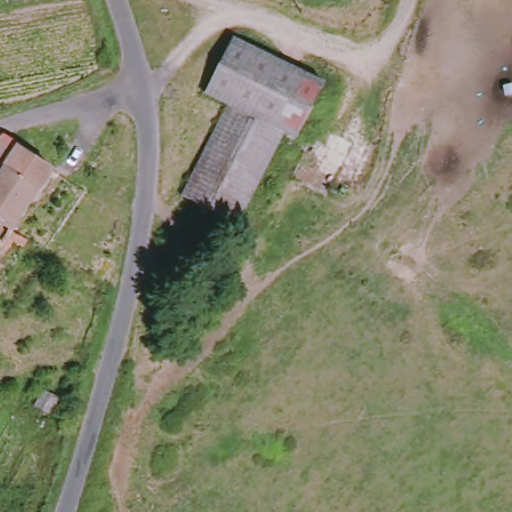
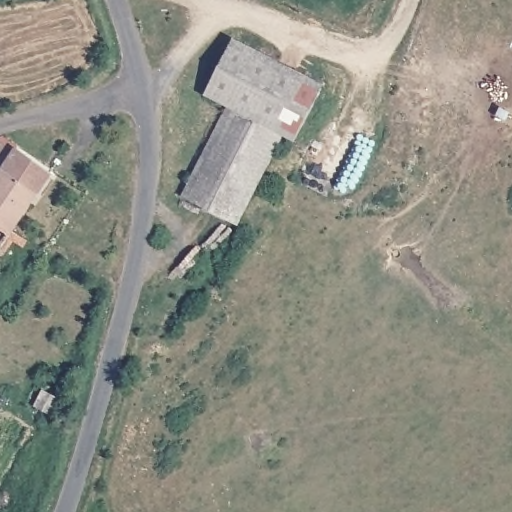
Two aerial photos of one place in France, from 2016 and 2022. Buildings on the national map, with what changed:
unchanged [(206,81),(224,36),(318,77),(301,119),(206,81)]
unchanged [(233,219),(182,198),(223,104),(201,94),(206,81),(301,119),(291,134),(283,130),(241,221),(233,219)]
unchanged [(2,138),(49,172),(10,234),(0,228),(0,139),(2,138)]

